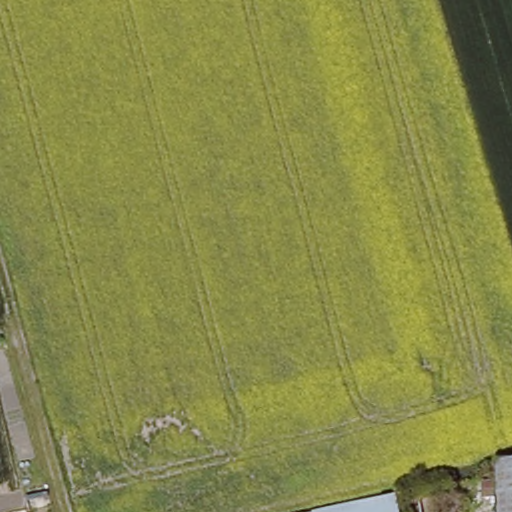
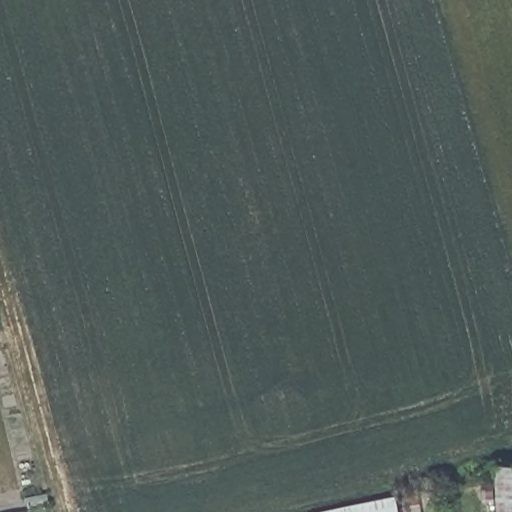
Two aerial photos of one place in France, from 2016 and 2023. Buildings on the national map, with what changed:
unchanged [(512,467),(512,512),(511,467),(512,467)]
unchanged [(391,506),(393,512),(360,512),(391,506)]

